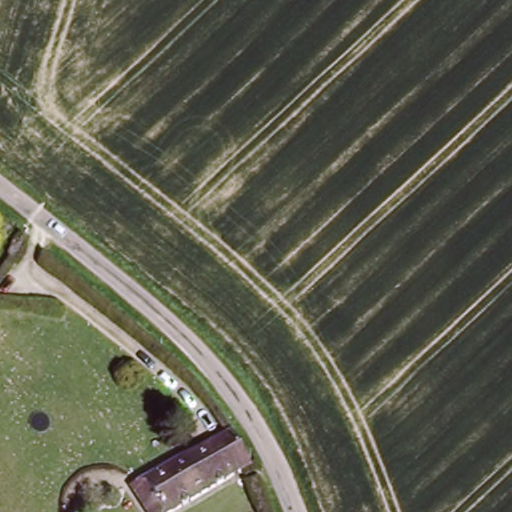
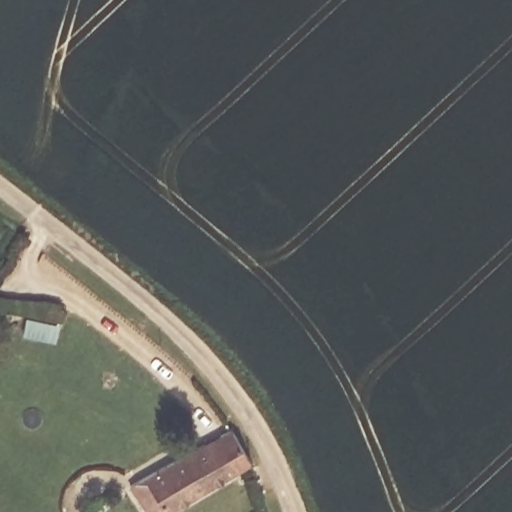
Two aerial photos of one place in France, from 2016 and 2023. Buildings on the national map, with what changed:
unchanged [(133,483),(146,476),(229,429),(250,464),(167,512),(150,512),(133,483)]

